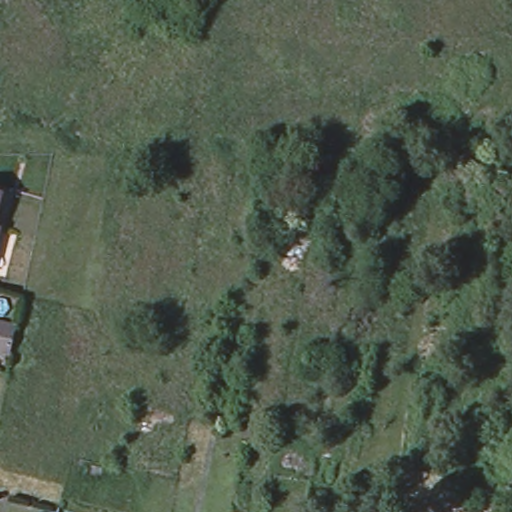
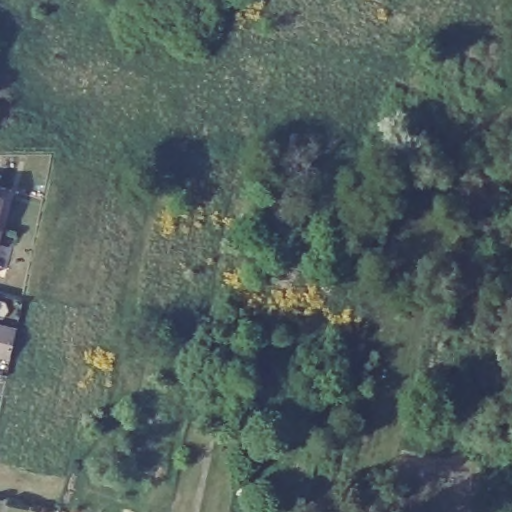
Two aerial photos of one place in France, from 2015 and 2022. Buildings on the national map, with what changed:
unchanged [(0,202),(0,196),(2,196),(0,202)]
unchanged [(0,232),(0,230),(1,230),(0,232)]

